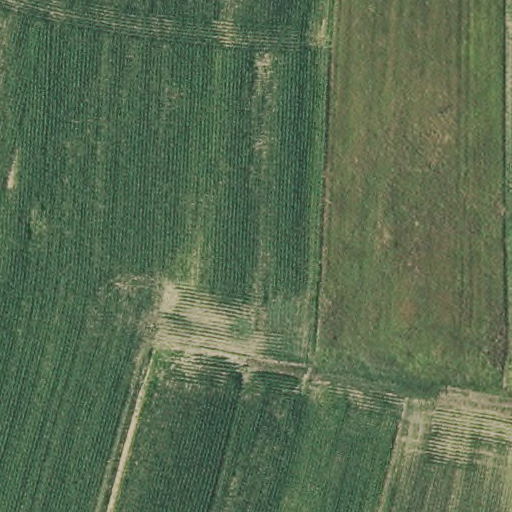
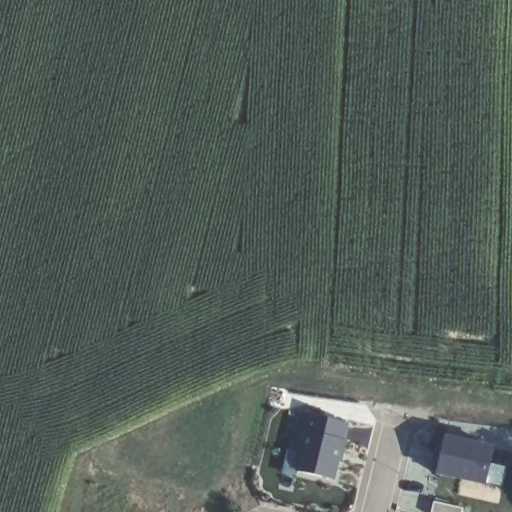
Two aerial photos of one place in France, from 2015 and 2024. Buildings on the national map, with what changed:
new [(335,480),(296,471),(301,452),(296,451),(304,413),(349,423),(335,480)]
new [(486,485),(438,475),(447,435),(494,445),(486,485)]

